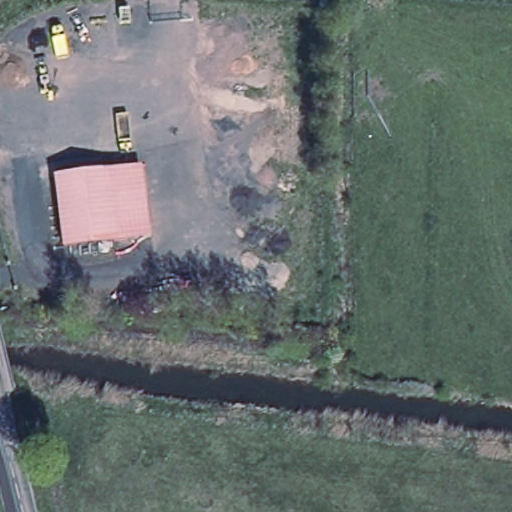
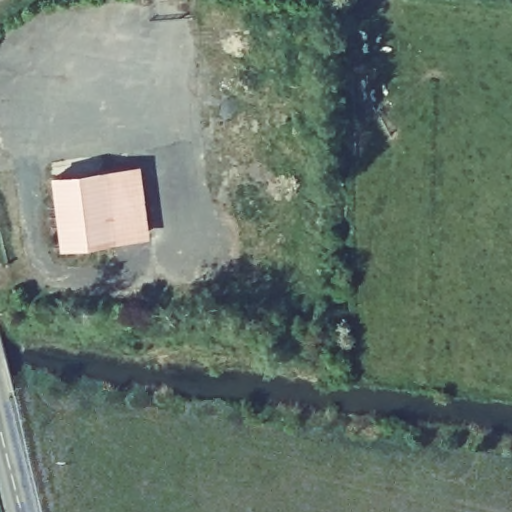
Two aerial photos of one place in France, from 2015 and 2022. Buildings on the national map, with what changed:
unchanged [(131,167),(141,241),(116,243),(66,248),(55,175),(106,170),(131,167)]

